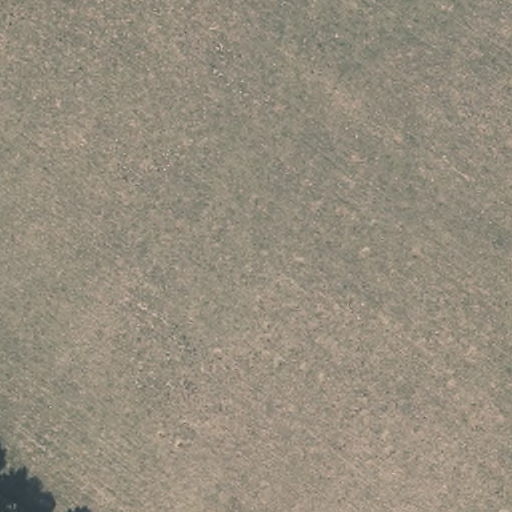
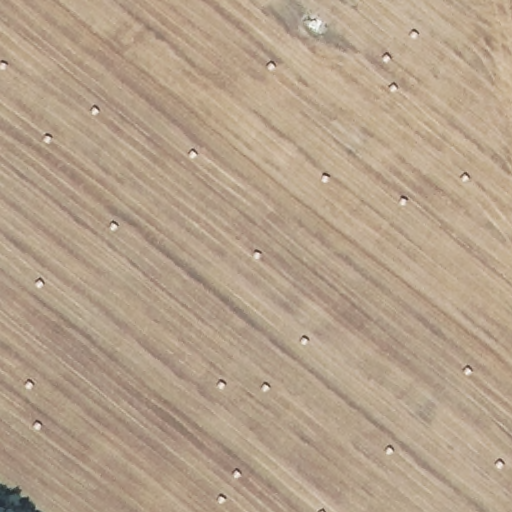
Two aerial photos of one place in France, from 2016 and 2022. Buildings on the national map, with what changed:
[]

